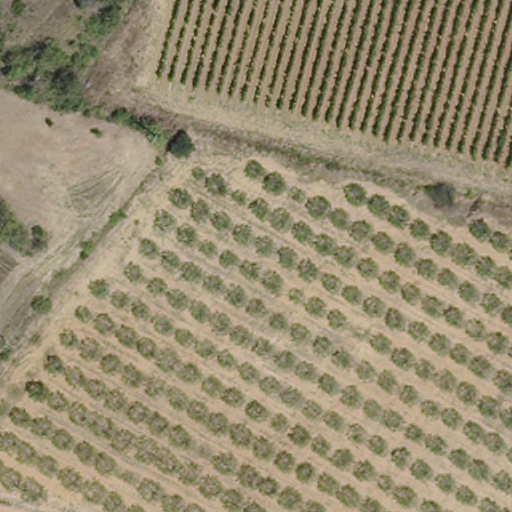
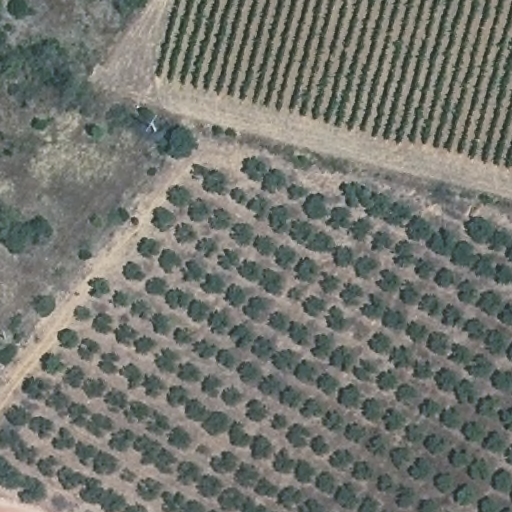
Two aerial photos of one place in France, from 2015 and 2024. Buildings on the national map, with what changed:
[]

